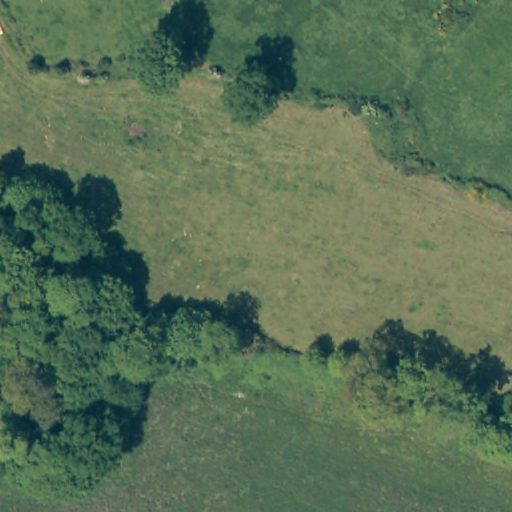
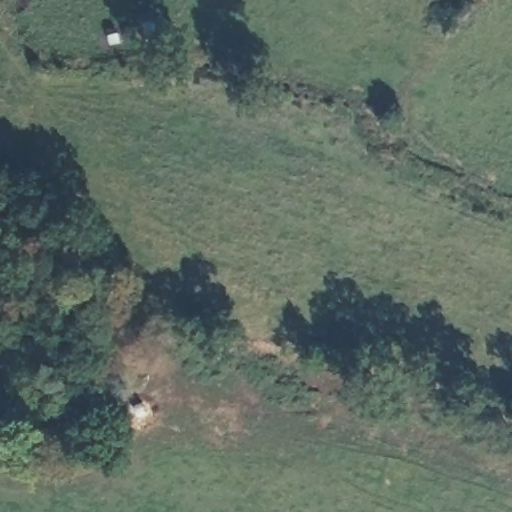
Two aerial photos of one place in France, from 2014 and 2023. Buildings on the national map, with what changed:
[]

